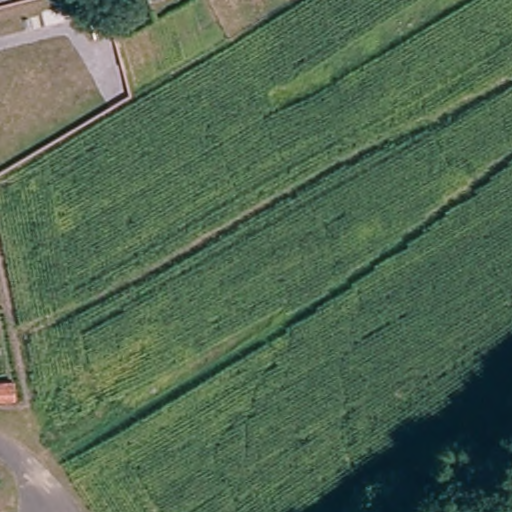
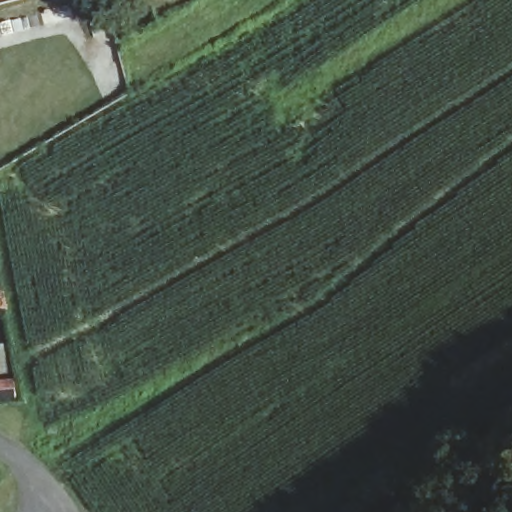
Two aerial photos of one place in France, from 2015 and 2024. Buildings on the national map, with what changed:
unchanged [(11,400),(0,401),(0,386),(9,385),(11,400)]

